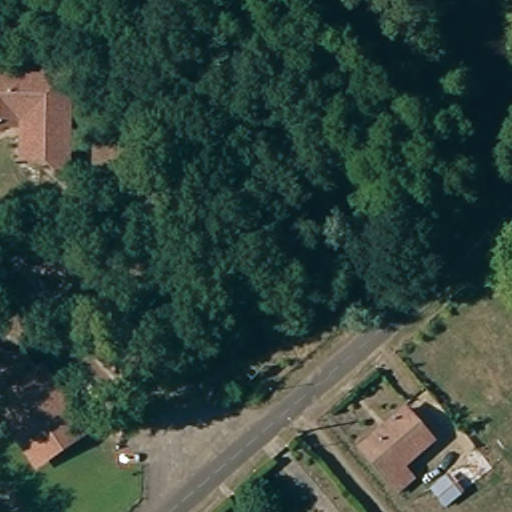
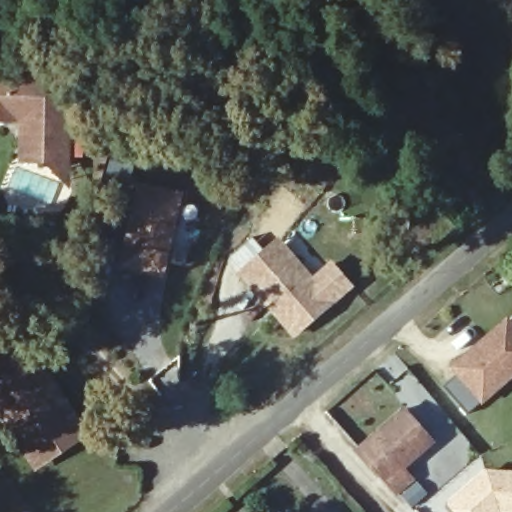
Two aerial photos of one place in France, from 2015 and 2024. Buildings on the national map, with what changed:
unchanged [(58,170),(50,163),(25,162),(24,158),(25,120),(0,120),(0,74),(71,75),(70,158),(69,182),(57,174),(58,170)]
unchanged [(148,185),(189,194),(171,275),(130,265),(148,185)]
new [(313,275),(334,259),(355,288),(294,339),(238,275),(242,271),(230,256),(254,237),(265,249),(279,236),(313,275)]
new [(463,360),(512,317),(512,370),(475,403),(453,379),(468,365),(463,360)]
unchanged [(47,465),(8,407),(0,406),(0,363),(8,364),(33,369),(82,441),(47,465)]
unchanged [(432,439),(400,466),(410,477),(394,490),(359,447),(404,408),(432,439)]
demolished [(486,483),(465,497),(461,495),(440,509),(429,487),(469,460),(486,483)]
new [(487,468),(512,470),(512,512),(453,512),(446,504),(487,468)]

